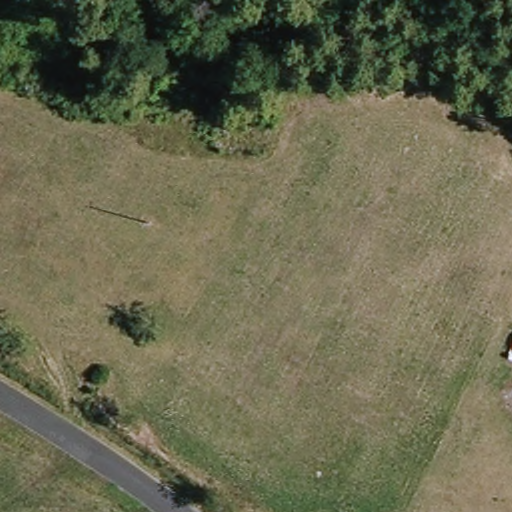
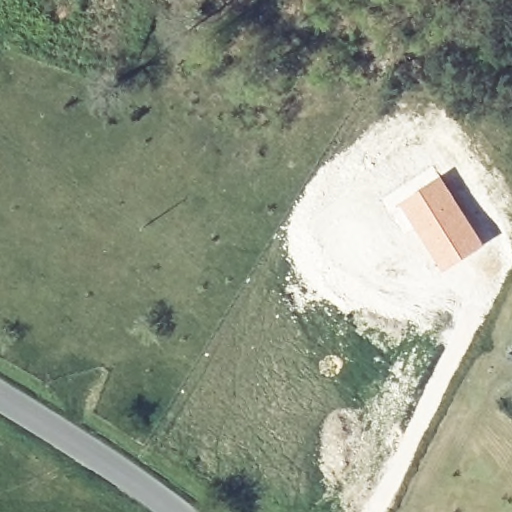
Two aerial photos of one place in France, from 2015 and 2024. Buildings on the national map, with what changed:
new [(438,175),(485,243),(443,271),(396,204),(438,175)]

